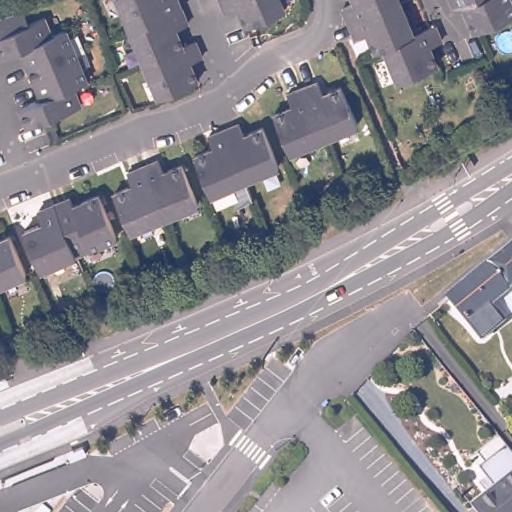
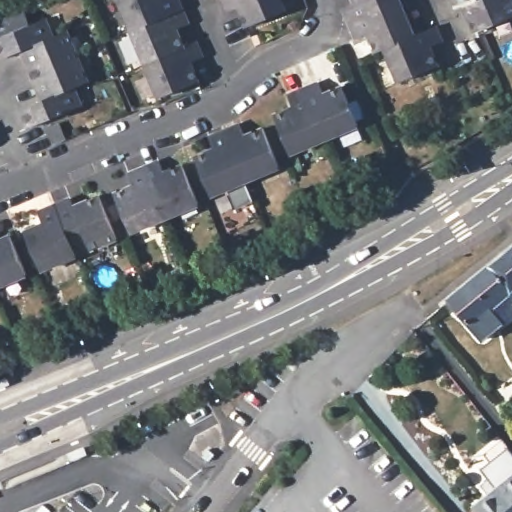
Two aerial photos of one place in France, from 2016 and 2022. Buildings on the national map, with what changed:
unchanged [(175,0),(188,29),(176,34),(183,52),(195,47),(202,62),(190,67),(198,86),(159,102),(116,0),(161,0),(162,3),(170,0),(175,0)]
unchanged [(256,22),(248,3),(236,8),(233,0),(292,0),(294,5),(256,22)]
unchanged [(357,0),(405,0),(420,32),(440,23),(448,39),(435,44),(442,60),(403,76),(389,45),(380,48),(372,29),(360,34),(354,20),(347,4),(357,0)]
unchanged [(466,2),(459,5),(457,0),(512,0),(512,14),(477,29),(466,2)]
unchanged [(21,51),(0,60),(0,20),(4,18),(23,11),(30,25),(44,19),(52,37),(66,32),(87,82),(73,88),(81,106),(81,107),(29,128),(20,109),(42,100),(36,85),(34,80),(21,51)]
unchanged [(273,115),(292,107),(287,95),(302,89),(317,82),(322,94),(341,86),(358,124),(323,140),(290,153),(273,115)]
unchanged [(195,161),(214,153),(209,141),(222,136),(223,135),(239,129),(244,141),(262,133),(278,172),(244,185),(211,200),(195,161)]
unchanged [(158,161),(163,173),(182,165),(198,203),(190,207),(189,207),(164,218),(131,232),(129,232),(114,194),(133,186),(128,174),(143,167),(158,161)]
unchanged [(54,205),(70,198),(74,206),(99,196),(117,238),(115,239),(76,256),(74,256),(41,270),(25,231),(44,224),(39,212),(53,205),(54,205)]
unchanged [(10,236),(26,274),(24,274),(0,284),(0,240),(10,236)]
unchanged [(512,292),(490,263),(512,246),(512,292)]
unchanged [(512,292),(512,316),(481,340),(447,298),(490,263),(512,292)]
unchanged [(512,512),(479,512),(471,502),(494,484),(479,464),(488,457),(506,442),(512,449),(512,512)]

